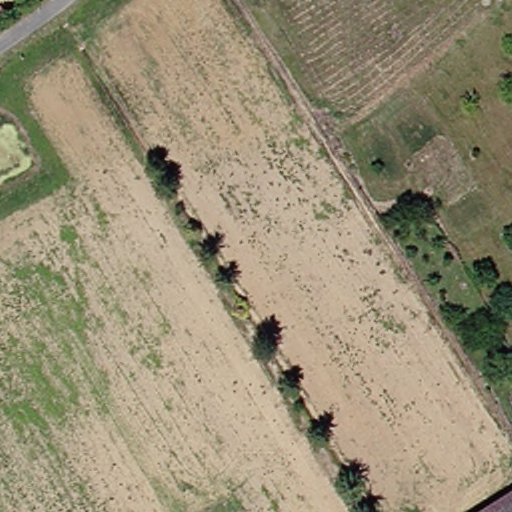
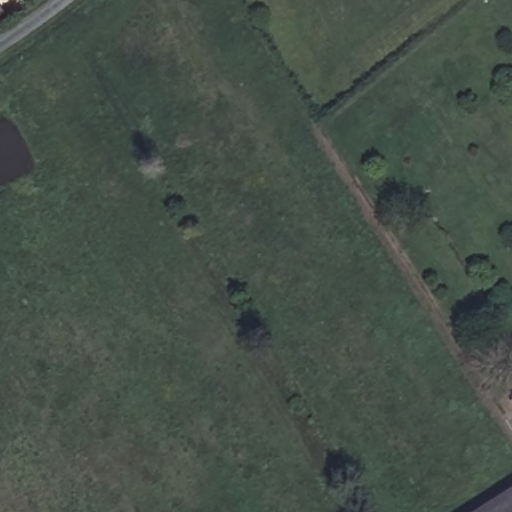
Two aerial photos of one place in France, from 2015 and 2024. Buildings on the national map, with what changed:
unchanged [(0,14),(0,7),(4,12),(0,14)]
unchanged [(510,401),(512,400),(512,404),(510,401)]
unchanged [(512,491),(512,512),(479,512),(512,491)]

